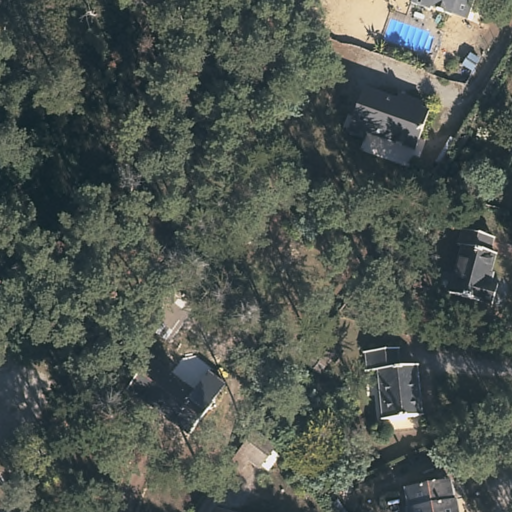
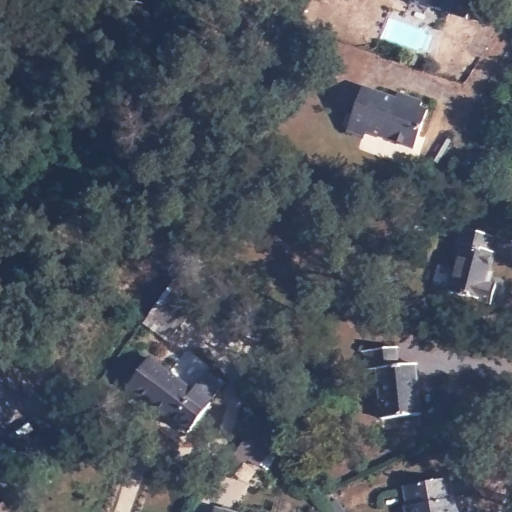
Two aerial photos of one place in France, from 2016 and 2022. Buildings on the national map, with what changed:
unchanged [(465,22),(448,16),(428,8),(427,11),(408,4),(409,0),(472,0),(465,22)]
unchanged [(469,77),(462,88),(452,81),(458,71),(469,77)]
unchanged [(350,128),(354,116),(366,84),(400,96),(402,90),(427,100),(424,105),(432,108),(418,147),(368,128),(366,134),(350,128)]
unchanged [(512,149),(512,155),(510,155),(512,149)]
unchanged [(492,238),(488,252),(495,254),(486,285),(496,288),(491,305),(449,294),(461,246),(457,245),(462,229),(492,238)]
unchanged [(210,288),(169,343),(142,324),(183,269),(210,288)]
unchanged [(466,309),(462,322),(442,316),(446,303),(466,309)]
unchanged [(319,375),(307,366),(300,361),(320,334),(326,339),(339,349),(319,375)]
unchanged [(403,367),(420,366),(426,417),(388,421),(383,371),(371,372),(369,353),(401,349),(403,367)]
unchanged [(127,389),(148,360),(198,397),(205,388),(217,398),(211,406),(189,435),(127,389)]
unchanged [(267,473),(259,467),(258,469),(247,460),(239,471),(229,464),(238,453),(254,431),(275,447),(271,452),(279,457),(267,473)]
unchanged [(455,501),(457,512),(406,512),(405,509),(409,508),(404,488),(449,480),(452,501),(455,501)]
unchanged [(223,512),(215,512),(215,510),(223,512)]

